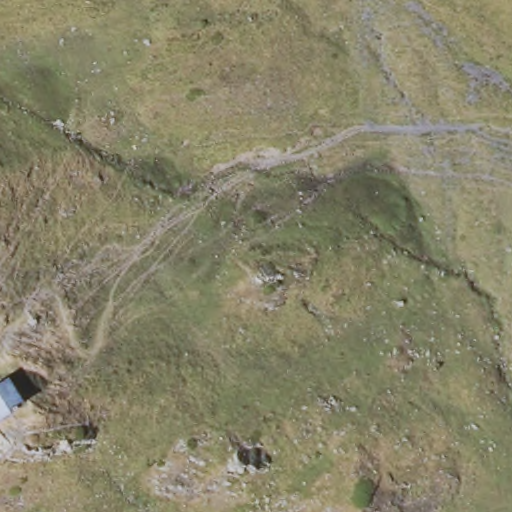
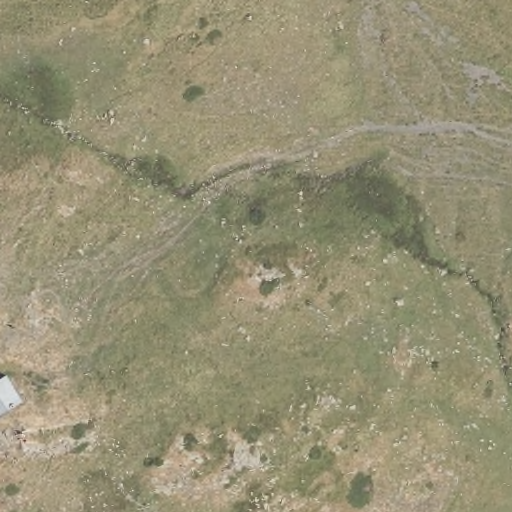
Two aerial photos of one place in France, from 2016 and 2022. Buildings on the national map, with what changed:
unchanged [(1,371),(20,398),(0,409),(0,372),(1,371)]

